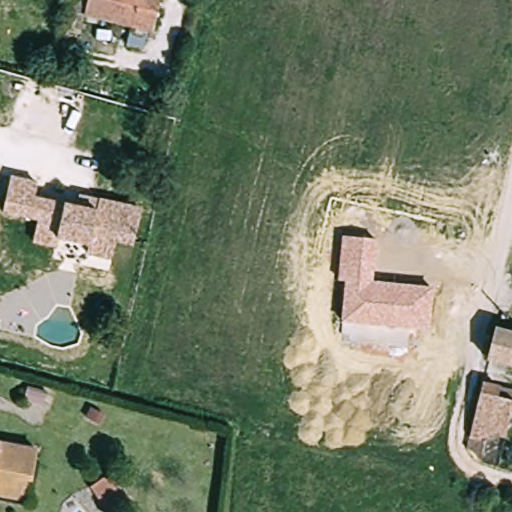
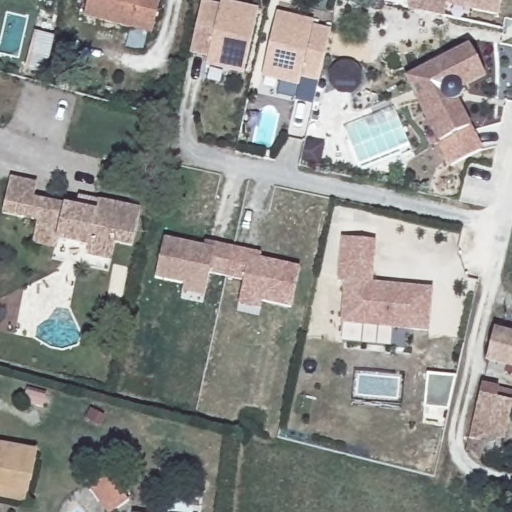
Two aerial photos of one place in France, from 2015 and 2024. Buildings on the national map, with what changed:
unchanged [(151,33),(84,16),(88,0),(159,0),(151,33)]
new [(202,0),(209,0),(220,2),(221,0),(232,0),(259,6),(245,66),(208,58),(209,53),(191,49),(202,0)]
new [(447,4),(444,16),(408,9),(409,0),(447,0),(447,4)]
new [(497,15),(447,4),(447,0),(500,0),(497,15)]
new [(278,9),(315,18),(313,23),(332,27),(320,76),(302,72),(301,77),(264,69),(278,9)]
new [(473,40),(488,70),(463,82),(464,84),(466,86),(466,89),(465,92),(462,95),(457,95),(471,122),(442,137),(409,73),(473,40)]
unchanged [(135,238),(118,234),(111,263),(54,250),(56,238),(35,233),(40,211),(5,202),(13,168),(39,174),(36,189),(63,195),(65,184),(81,187),(143,202),(135,238)]
unchanged [(373,280),(432,287),(428,330),(342,321),(346,283),(338,283),(342,235),(376,241),(373,280)]
new [(154,279),(163,239),(204,248),(205,243),(215,245),(233,249),(226,278),(209,275),(206,290),(204,298),(182,293),(184,285),(154,279)]
unchanged [(244,282),(226,278),(233,249),(251,253),(260,255),(259,260),(301,269),(292,309),(262,302),(261,310),(239,305),(240,298),(244,282)]
unchanged [(494,329),(512,334),(512,368),(487,361),(494,329)]
new [(425,372),(451,375),(443,409),(420,407),(425,372)]
unchanged [(486,435),(480,462),(476,458),(469,451),(467,450),(478,401),(482,385),(499,388),(497,398),(512,402),(512,404),(505,438),(486,435)]
unchanged [(45,392),(42,407),(22,402),(26,387),(45,392)]
unchanged [(0,497),(0,444),(35,450),(30,481),(26,502),(0,497)]
unchanged [(110,512),(107,512),(90,487),(110,475),(128,501),(110,512)]

